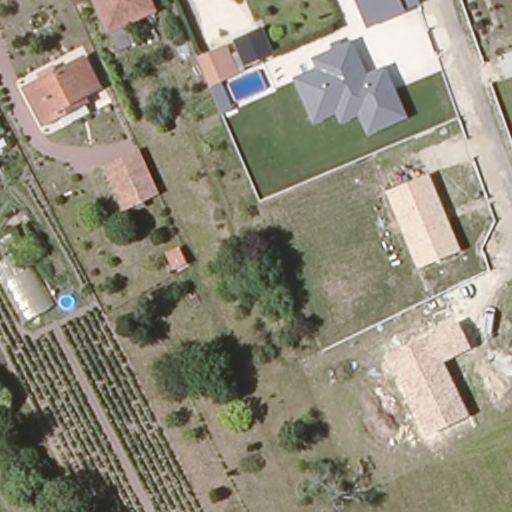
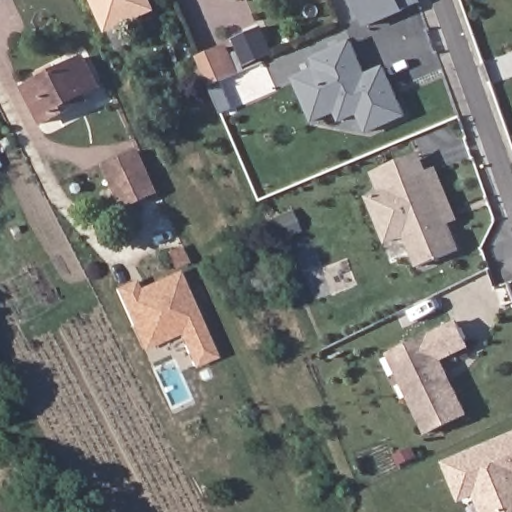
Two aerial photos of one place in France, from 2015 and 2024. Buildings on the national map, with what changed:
unchanged [(156,11),(111,30),(98,0),(151,0),(156,11)]
unchanged [(366,29),(354,0),(419,0),(421,5),(406,12),(366,29)]
unchanged [(352,39),(366,74),(385,66),(407,117),(367,135),(359,115),(341,124),(337,114),(313,124),(293,78),(316,69),(311,59),(332,49),(330,45),(341,40),(342,44),(352,39)]
unchanged [(196,56),(226,42),(231,54),(255,44),(262,62),(238,72),(209,84),(196,56)]
unchanged [(101,87),(83,97),(86,104),(41,125),(26,89),(89,61),(101,87)]
unchanged [(143,201),(121,156),(142,147),(156,180),(162,192),(143,201)]
unchanged [(120,212),(100,166),(121,156),(143,201),(120,212)]
unchanged [(418,268),(387,192),(429,174),(461,252),(418,268)]
new [(191,368),(178,335),(140,352),(113,288),(133,280),(136,288),(177,272),(216,358),(191,368)]
unchanged [(443,362),(469,415),(425,436),(388,355),(456,321),(471,348),(443,362)]
new [(480,512),(474,497),(459,504),(442,462),(512,432),(512,512),(480,512)]

